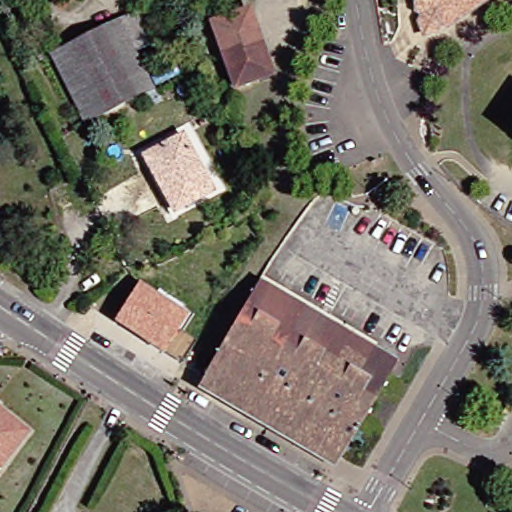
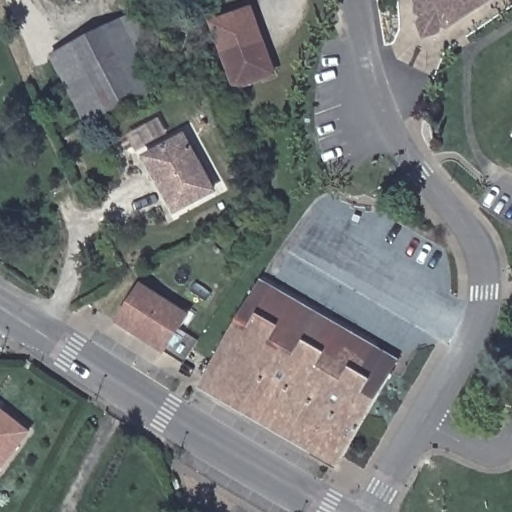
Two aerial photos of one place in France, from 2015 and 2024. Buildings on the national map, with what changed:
unchanged [(408,0),(488,0),(452,24),(432,37),(411,27),(408,5),(408,0)]
unchanged [(267,77),(229,90),(206,25),(244,11),(267,77)]
unchanged [(129,20),(145,51),(130,58),(144,86),(170,72),(176,82),(82,131),(46,62),(129,20)]
unchanged [(512,125),(512,143),(503,138),(512,125)]
unchanged [(206,192),(169,212),(140,159),(177,138),(206,192)]
unchanged [(132,282),(183,317),(156,357),(106,323),(132,282)]
unchanged [(292,328),(384,381),(337,462),(198,381),(253,287),(300,314),(292,328)]
unchanged [(300,314),(392,366),(384,381),(292,328),(300,314)]
unchanged [(337,462),(329,475),(205,404),(191,395),(198,381),(337,462)]
unchanged [(24,438),(0,468),(0,419),(24,438)]

